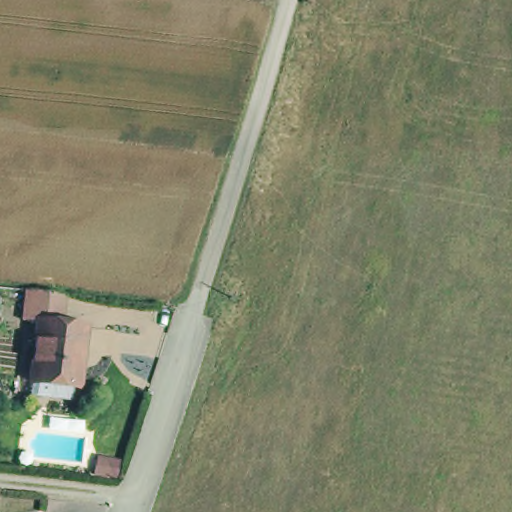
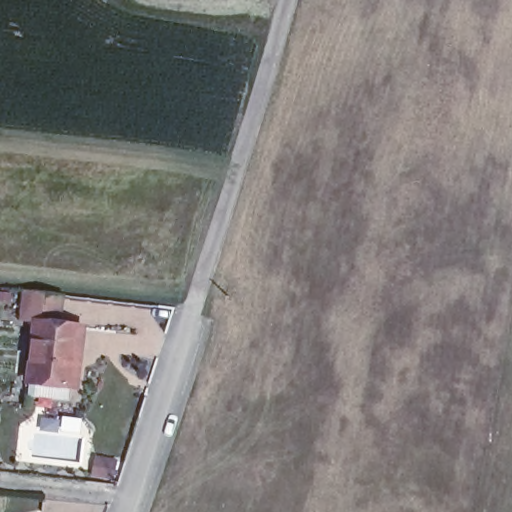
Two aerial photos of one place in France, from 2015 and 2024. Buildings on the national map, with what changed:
unchanged [(61,321),(37,318),(22,316),(25,288),(65,292),(61,321)]
unchanged [(86,324),(82,359),(78,385),(30,379),(37,318),(61,321),(80,323),(86,324)]

